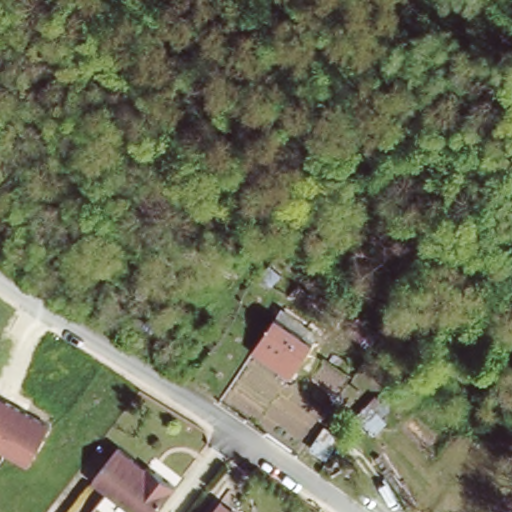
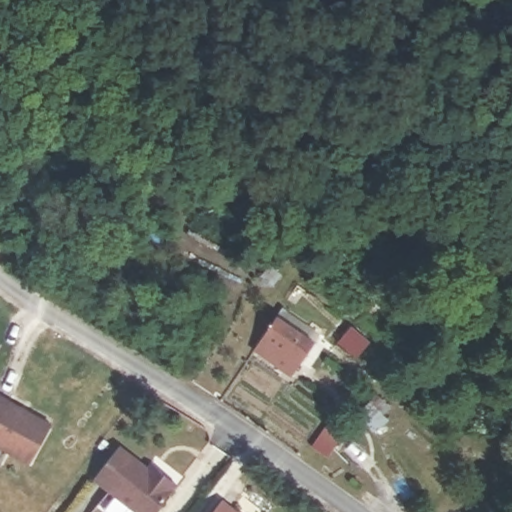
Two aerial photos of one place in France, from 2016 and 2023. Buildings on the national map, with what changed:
unchanged [(270,322),(305,350),(293,367),(258,339),(270,322)]
unchanged [(50,425),(30,465),(0,449),(0,397),(50,425)]
unchanged [(147,465),(150,461),(157,467),(174,480),(150,512),(138,512),(91,475),(116,440),(147,465)]
unchanged [(219,496),(238,512),(206,512),(219,496)]

